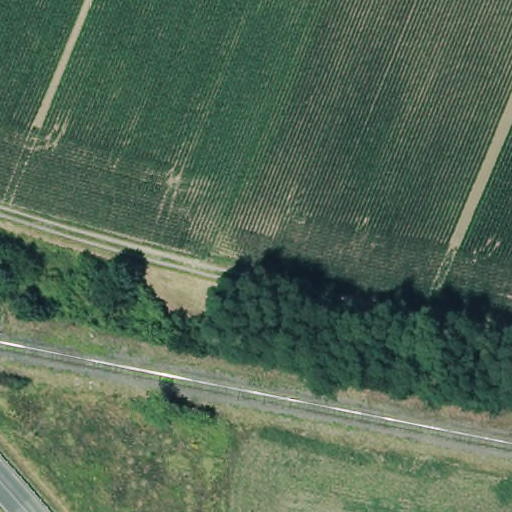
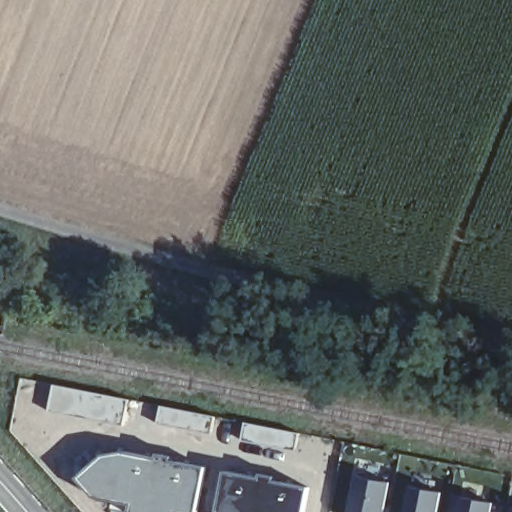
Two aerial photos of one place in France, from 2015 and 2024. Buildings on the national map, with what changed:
new [(51,383),(128,398),(123,424),(46,408),(51,383)]
new [(157,403),(215,414),(212,433),(154,421),(157,403)]
new [(244,420),(299,431),(295,449),(240,438),(244,420)]
new [(200,512),(110,512),(112,501),(97,498),(80,477),(105,456),(122,451),(207,466),(200,512)]
new [(308,486),(304,512),(219,512),(225,473),(308,486)]
new [(357,475),(388,481),(382,512),(349,512),(357,475)]
new [(408,485),(440,491),(436,512),(403,512),(408,485)]
new [(460,496),(492,502),(490,512),(456,512),(460,496)]

